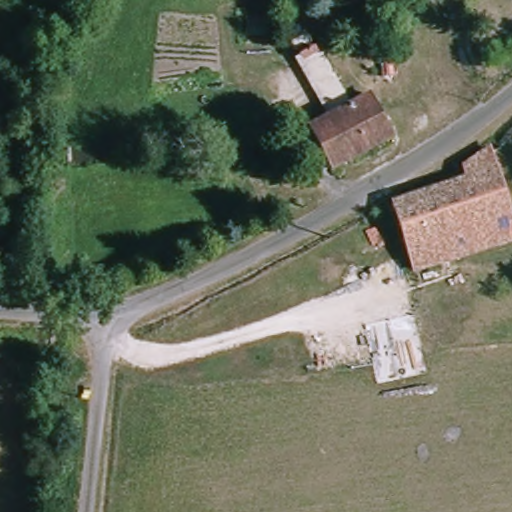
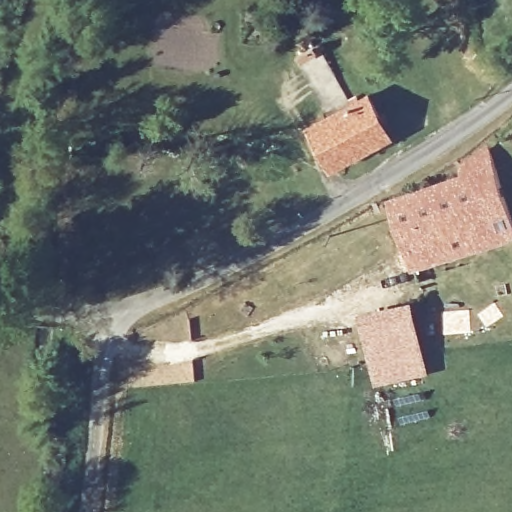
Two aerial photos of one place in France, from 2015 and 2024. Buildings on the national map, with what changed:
unchanged [(298,69),(318,54),(343,105),(368,95),(389,137),(326,173),(304,125),(325,115),(298,69)]
unchanged [(512,238),(412,271),(385,205),(464,180),(459,164),(486,149),(512,230),(512,238)]
new [(416,315),(431,375),(376,387),(362,326),(416,315)]

